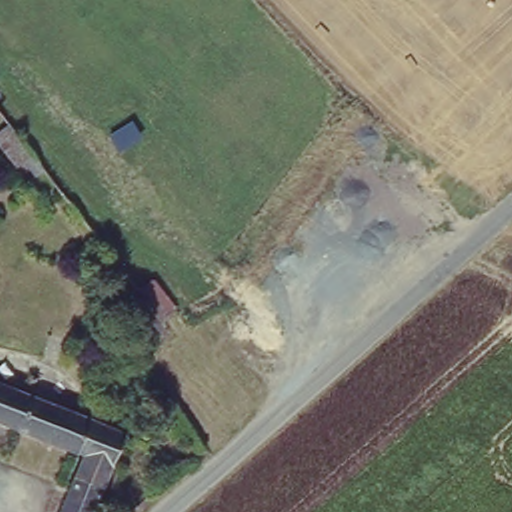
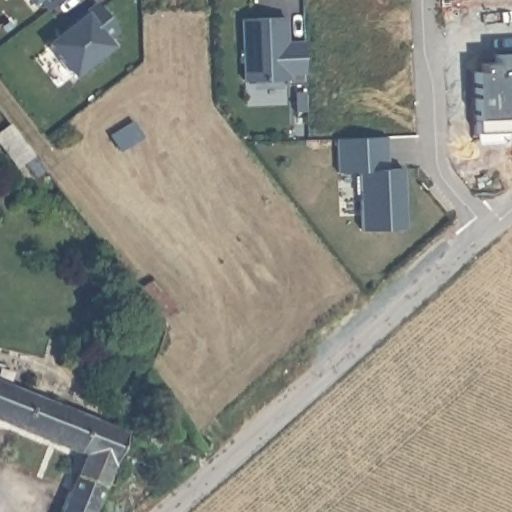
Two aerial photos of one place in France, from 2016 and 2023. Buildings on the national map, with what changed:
new [(29,0),(40,0),(33,5),(29,0)]
new [(46,42),(99,2),(125,35),(75,76),(46,42)]
new [(282,18),(282,36),(302,36),(302,75),(280,75),(281,81),(242,80),(239,16),(282,18)]
new [(482,142),(481,71),(485,71),(485,63),(499,63),(499,52),(512,52),(512,135),(506,141),(482,142)]
unchanged [(44,169),(34,177),(22,163),(16,168),(0,147),(0,135),(12,127),(44,169)]
new [(392,136),(392,163),(402,164),(403,233),(358,232),(357,180),(330,180),(327,137),(392,136)]
unchanged [(160,318),(135,285),(154,273),(177,306),(160,318)]
unchanged [(20,390),(24,382),(39,387),(35,396),(124,431),(90,512),(55,512),(80,451),(0,416),(0,382),(20,390)]

